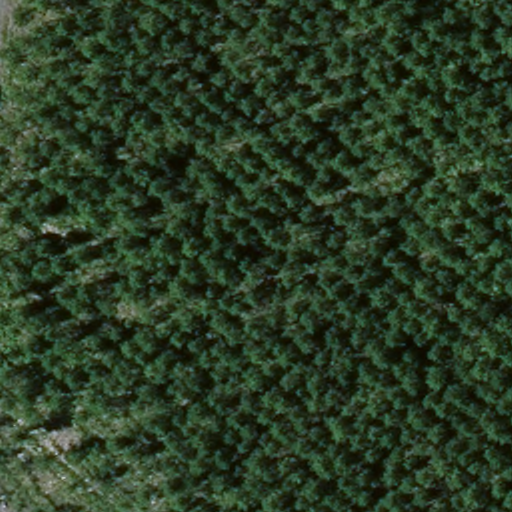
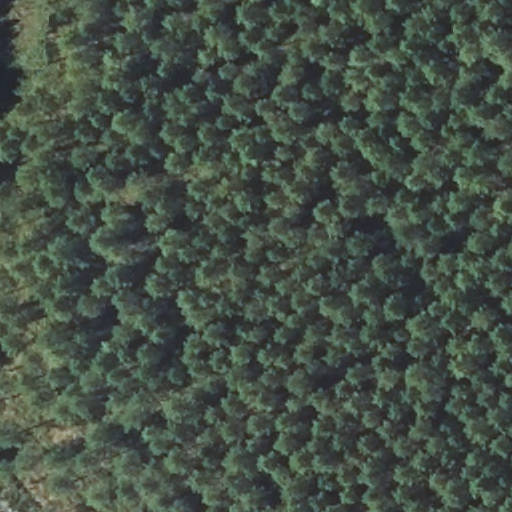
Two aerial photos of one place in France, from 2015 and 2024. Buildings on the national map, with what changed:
[]

